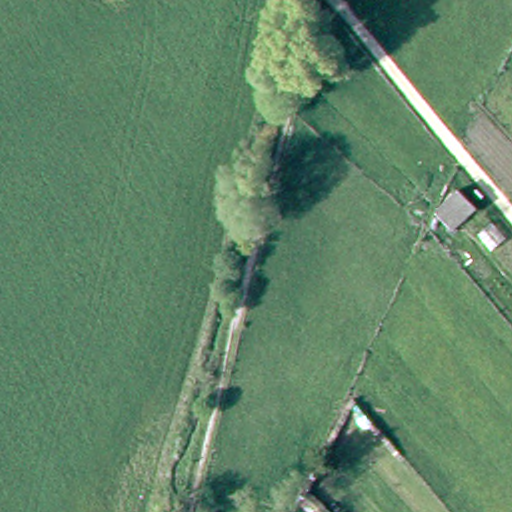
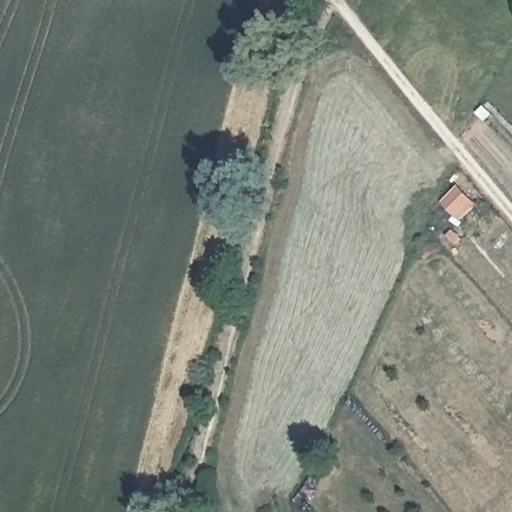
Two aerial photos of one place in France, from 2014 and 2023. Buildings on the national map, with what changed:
unchanged [(466,221),(452,205),(467,192),(480,208),(466,221)]

